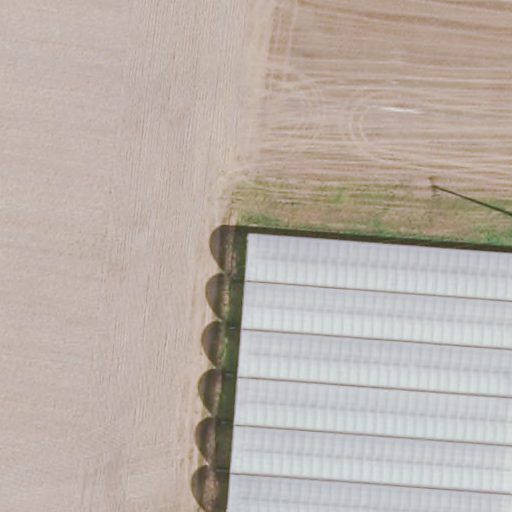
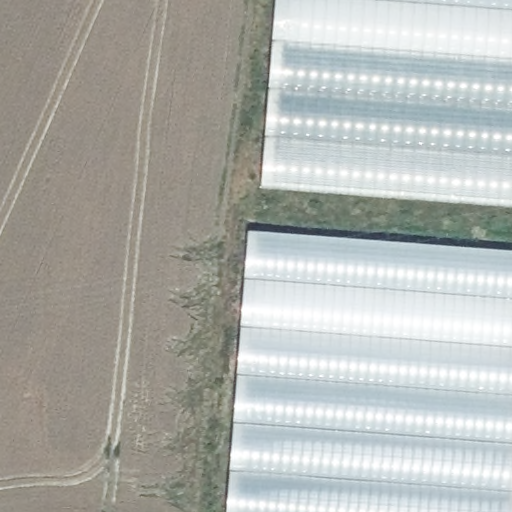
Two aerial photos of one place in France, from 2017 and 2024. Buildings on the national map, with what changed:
new [(267,183),(277,0),(512,0),(512,203),(267,183)]
unchanged [(228,512),(250,234),(512,254),(512,512),(228,512)]

